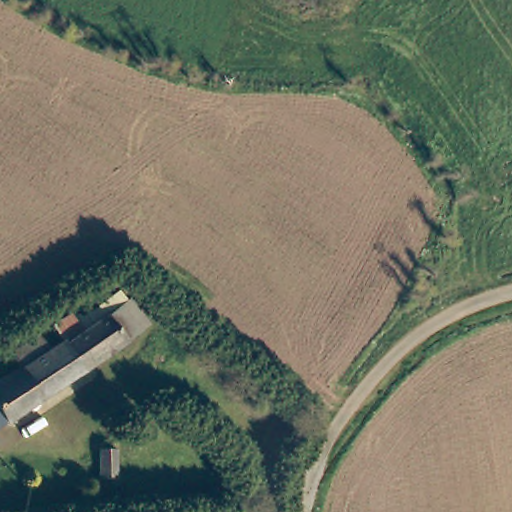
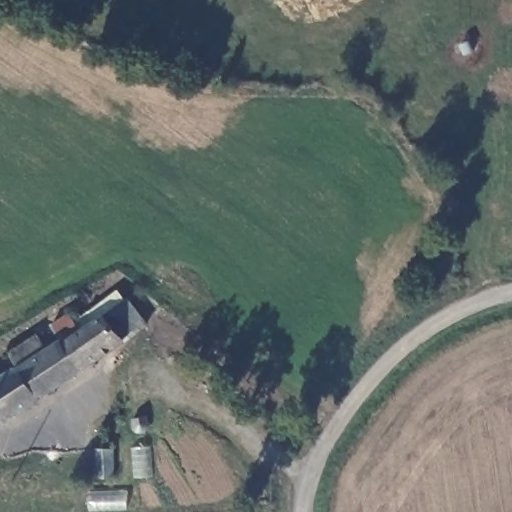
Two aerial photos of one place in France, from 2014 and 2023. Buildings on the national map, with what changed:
unchanged [(6,358),(41,336),(52,352),(67,343),(57,327),(76,315),(89,332),(114,315),(136,300),(152,323),(130,338),(60,385),(9,420),(0,405),(0,382),(16,372),(6,358)]
unchanged [(0,426),(0,405),(9,420),(0,426)]
unchanged [(137,416),(140,414),(142,413),(144,413),(147,413),(150,415),(151,417),(152,419),(152,422),(152,424),(151,426),(149,428),(147,429),(142,426),(135,420),(137,416)]
unchanged [(117,448),(117,478),(99,479),(99,448),(117,448)]

